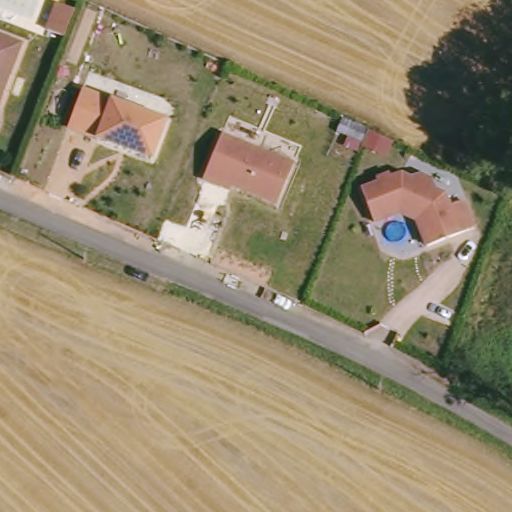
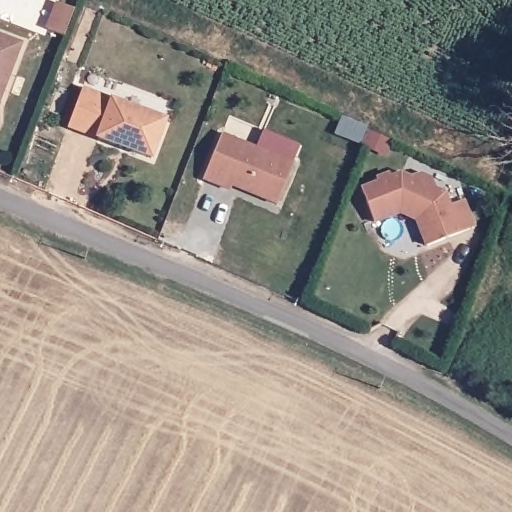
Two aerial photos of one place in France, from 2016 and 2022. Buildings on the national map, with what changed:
unchanged [(63,37),(47,30),(57,4),(74,10),(63,37)]
unchanged [(0,81),(0,38),(15,44),(0,81)]
unchanged [(70,123),(85,85),(167,119),(150,157),(70,123)]
unchanged [(222,134),(293,164),(277,204),(225,183),(222,187),(202,179),(222,134)]
unchanged [(451,208),(465,203),(475,230),(427,247),(423,234),(428,232),(423,219),(401,208),(391,212),(393,217),(375,223),(362,189),(380,184),(378,180),(391,175),(392,179),(402,175),(412,179),(417,178),(434,185),(436,189),(447,194),(451,208)]

